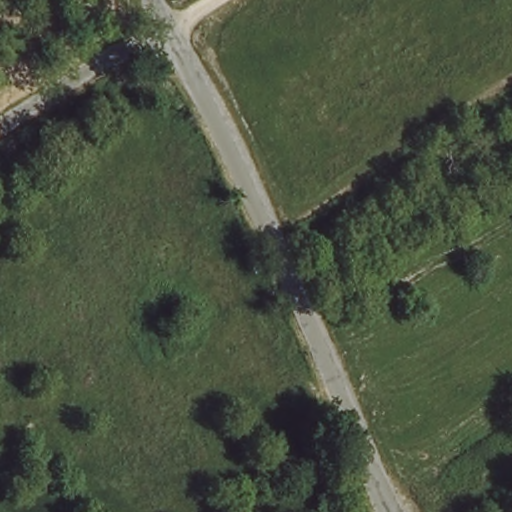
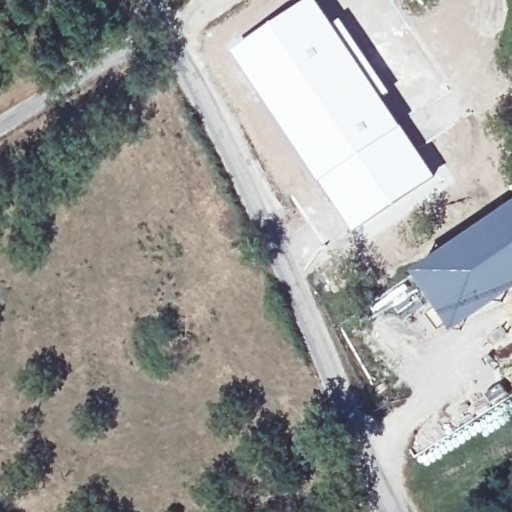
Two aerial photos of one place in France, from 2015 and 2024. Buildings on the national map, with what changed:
new [(307,0),(320,0),(335,22),(342,17),(394,92),(387,97),(440,177),(357,232),(234,50),(307,0)]
new [(449,247),(512,204),(512,294),(488,311),(457,330),(418,272),(449,247)]

